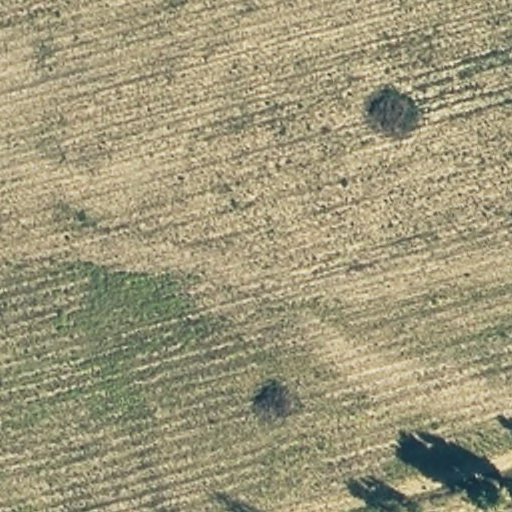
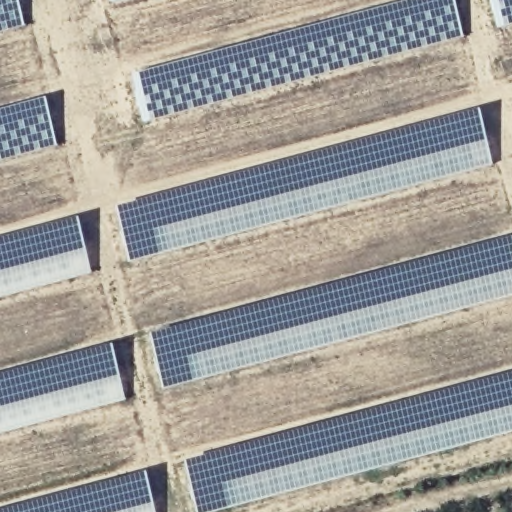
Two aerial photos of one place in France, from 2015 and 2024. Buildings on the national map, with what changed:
new [(0,0),(15,0),(21,26),(0,32),(0,0)]
new [(108,0),(120,0),(109,3),(108,0)]
new [(141,123),(130,76),(415,0),(450,0),(459,37),(141,123)]
new [(512,0),(512,24),(497,28),(489,0),(512,0)]
new [(0,110),(41,99),(54,146),(0,161),(0,110)]
new [(489,164),(128,262),(114,208),(475,111),(489,164)]
new [(0,239),(73,219),(88,274),(0,297),(0,239)]
new [(512,251),(512,295),(160,389),(147,335),(509,238),(512,251)]
new [(0,433),(0,375),(107,346),(122,400),(0,433)]
new [(182,461),(512,373),(512,432),(213,512),(195,512),(182,461)]
new [(0,511),(141,472),(152,512),(0,512),(0,511)]

